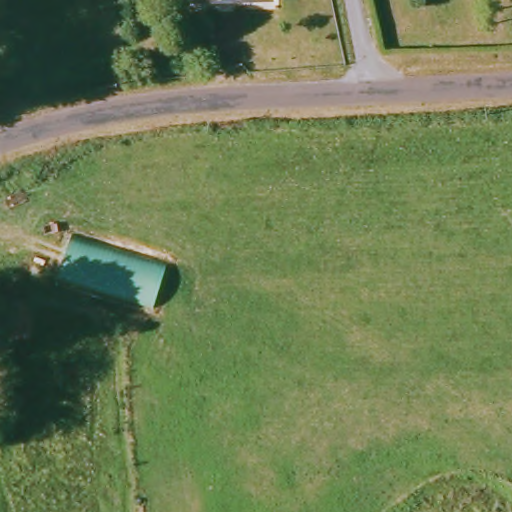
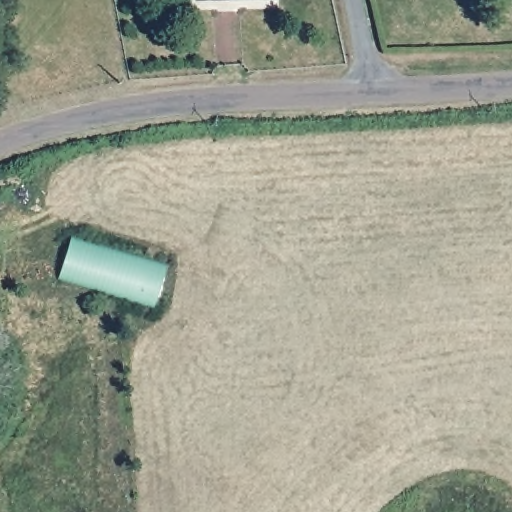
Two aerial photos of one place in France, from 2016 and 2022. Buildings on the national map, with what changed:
unchanged [(153,307),(58,277),(70,236),(166,266),(153,307)]

